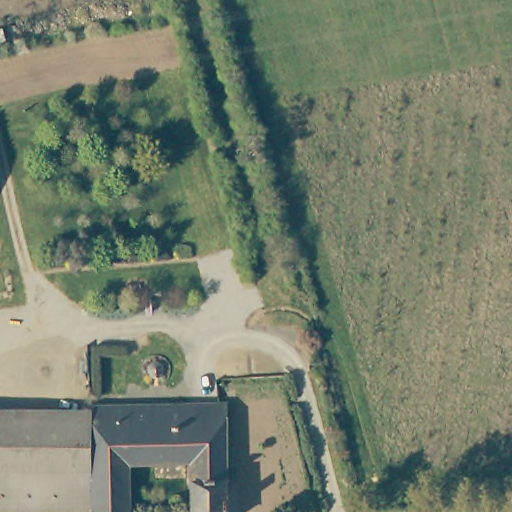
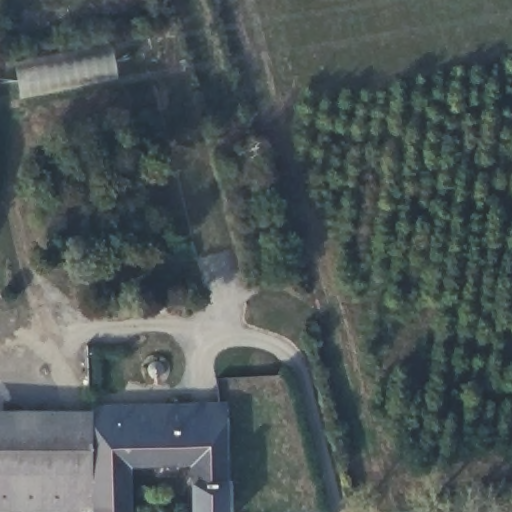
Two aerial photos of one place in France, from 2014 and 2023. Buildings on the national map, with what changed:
new [(112,51),(117,81),(21,98),(16,67),(112,51)]
unchanged [(190,407),(213,407),(213,402),(225,401),(226,490),(191,491),(191,467),(190,407)]
unchanged [(130,512),(91,512),(90,408),(190,407),(191,467),(130,468),(130,512)]
unchanged [(91,512),(57,512),(0,512),(0,410),(50,409),(90,408),(91,512)]
unchanged [(226,512),(192,512),(191,491),(226,490),(226,512)]

